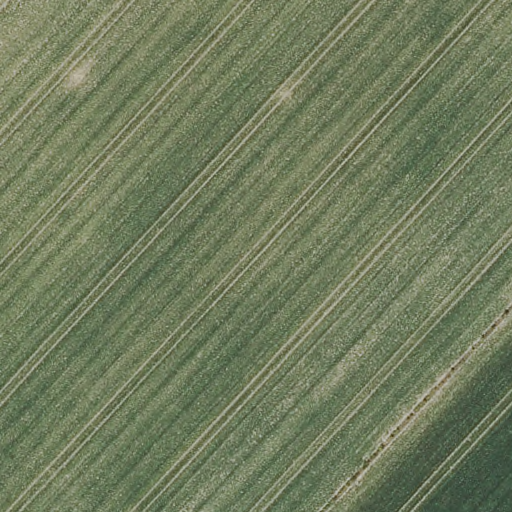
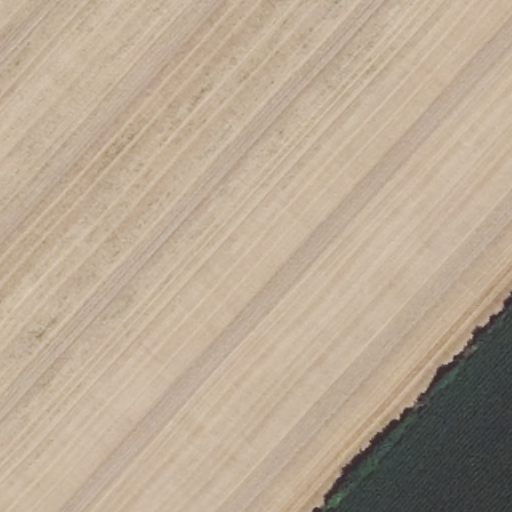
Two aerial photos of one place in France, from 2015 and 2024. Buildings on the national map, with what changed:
[]

